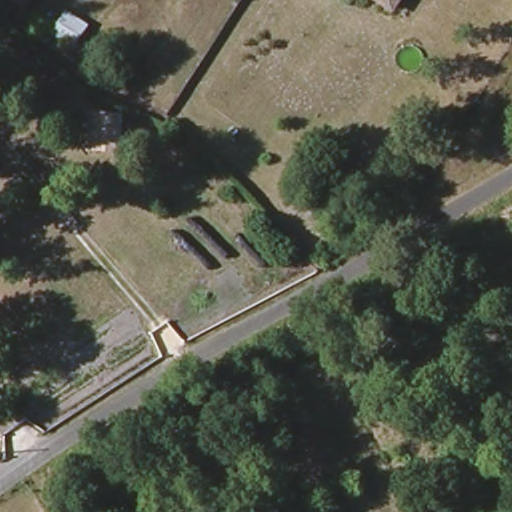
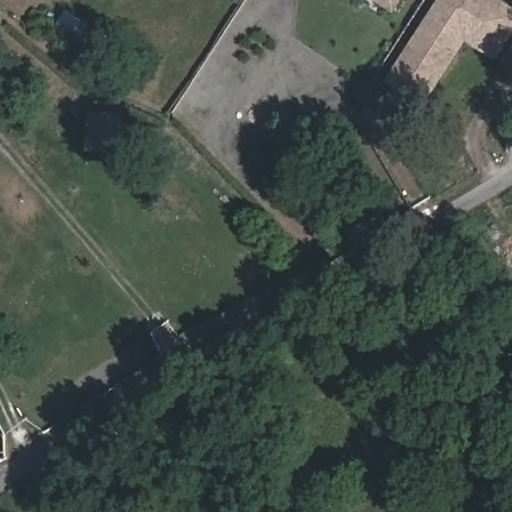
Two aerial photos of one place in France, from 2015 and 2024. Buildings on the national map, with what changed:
unchanged [(13,0),(27,0),(22,7),(13,0)]
unchanged [(397,12),(379,0),(404,0),(397,12)]
new [(442,0),(496,0),(512,11),(512,28),(503,42),(466,19),(458,31),(461,34),(454,46),(458,49),(423,102),(390,81),(442,0)]
unchanged [(70,55),(51,42),(67,15),(88,26),(70,55)]
unchanged [(133,104),(131,132),(102,130),(104,102),(133,104)]

